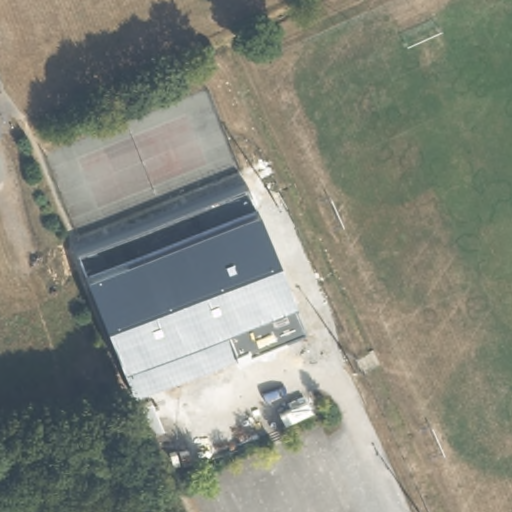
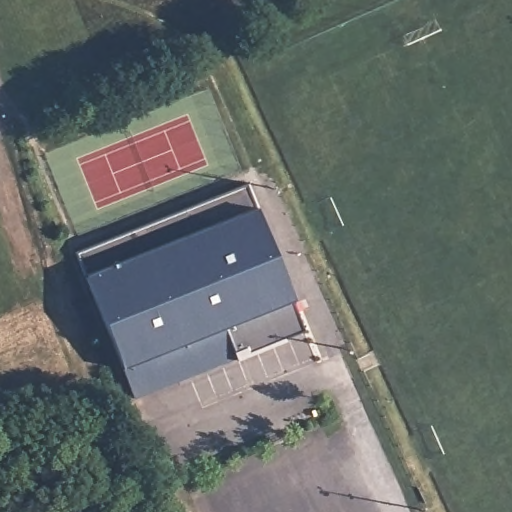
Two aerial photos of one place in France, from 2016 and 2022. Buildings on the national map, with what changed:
unchanged [(299,330),(136,396),(86,272),(250,205),(299,330)]

